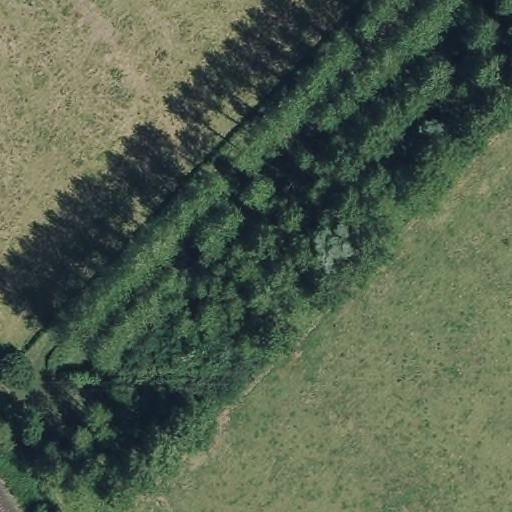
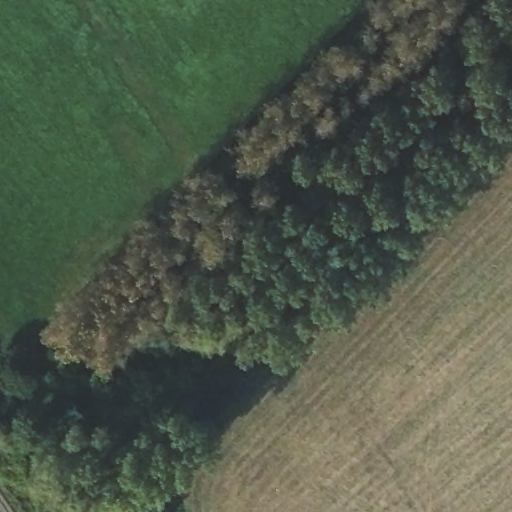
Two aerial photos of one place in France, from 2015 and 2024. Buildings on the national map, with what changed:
[]

